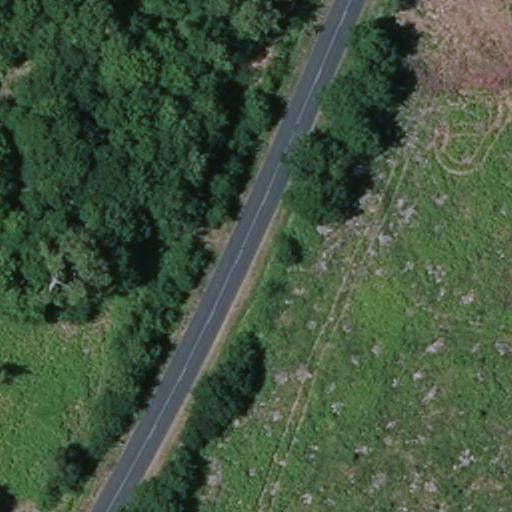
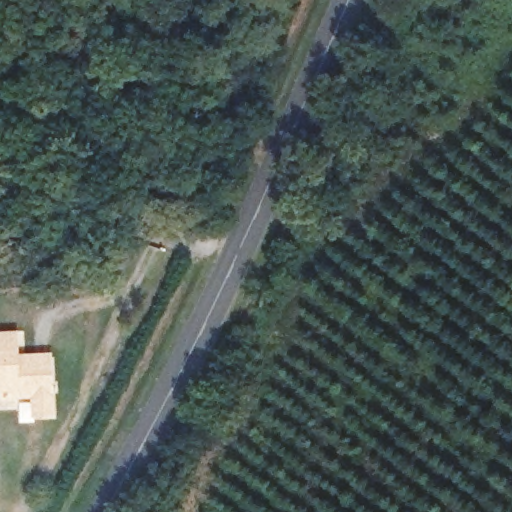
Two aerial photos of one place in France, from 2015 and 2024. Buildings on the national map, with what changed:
new [(21,337),(22,360),(54,359),(55,384),(57,417),(40,418),(39,398),(21,399),(21,391),(0,392),(0,338),(21,337)]

